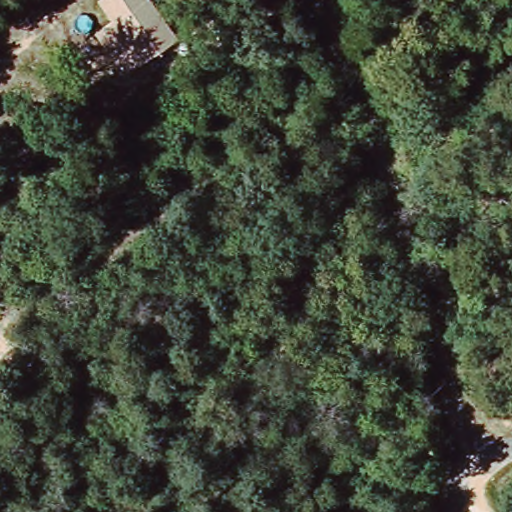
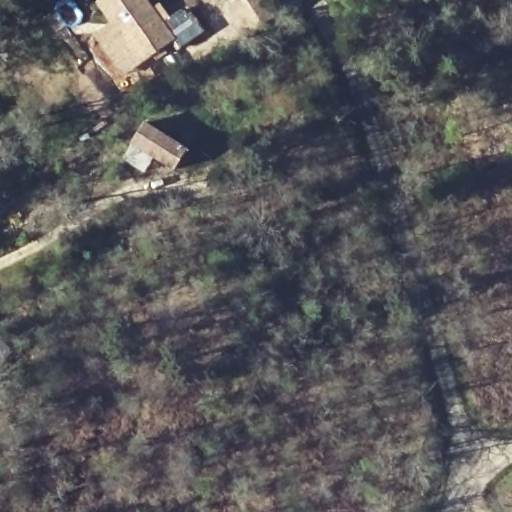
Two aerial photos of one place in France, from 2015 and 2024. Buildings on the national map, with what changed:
unchanged [(99,0),(150,0),(177,40),(121,73),(95,32),(110,23),(97,1),(99,0)]
unchanged [(391,2),(405,17),(382,41),(367,27),(391,2)]
new [(191,149),(178,172),(133,144),(148,121),(191,149)]

